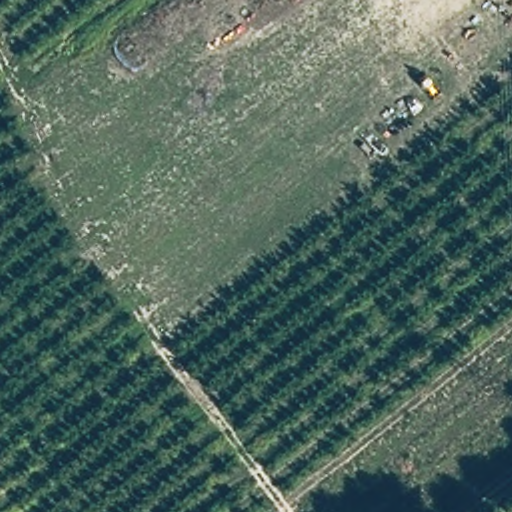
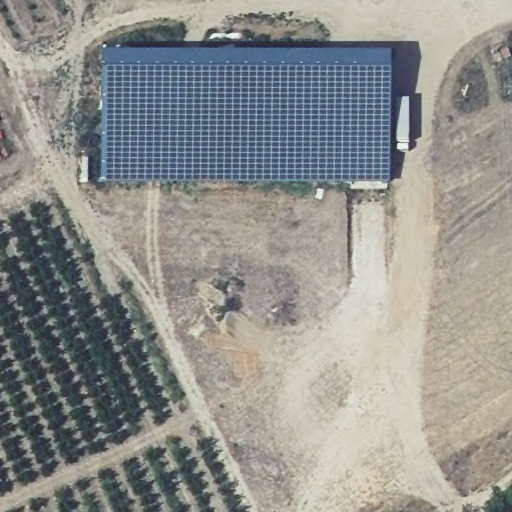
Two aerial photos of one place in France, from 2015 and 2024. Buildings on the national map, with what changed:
new [(388,55),(387,184),(98,184),(101,55),(388,55)]

